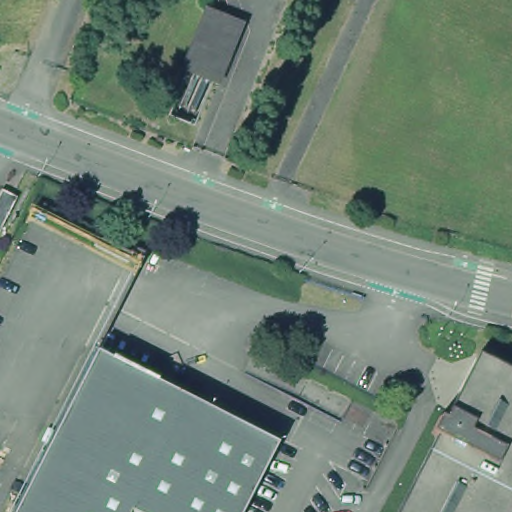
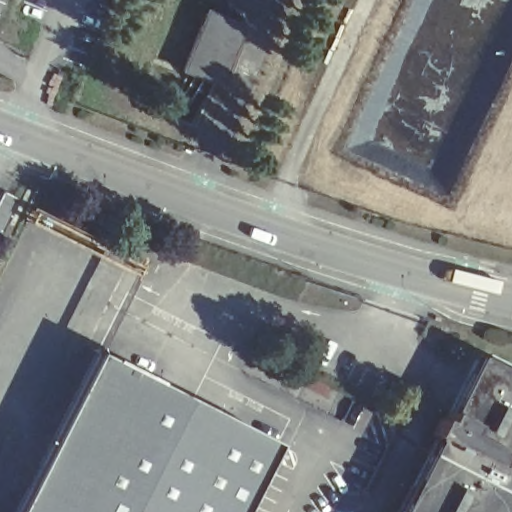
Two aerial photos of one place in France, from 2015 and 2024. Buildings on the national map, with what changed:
unchanged [(217,84),(182,70),(205,12),(240,26),(217,84)]
unchanged [(15,193),(0,223),(0,186),(15,193)]
unchanged [(102,223),(134,241),(126,257),(93,239),(102,223)]
unchanged [(280,448),(248,512),(21,512),(100,357),(280,448)]
unchanged [(461,422),(491,362),(512,373),(512,509),(510,512),(395,512),(445,415),(461,422)]

